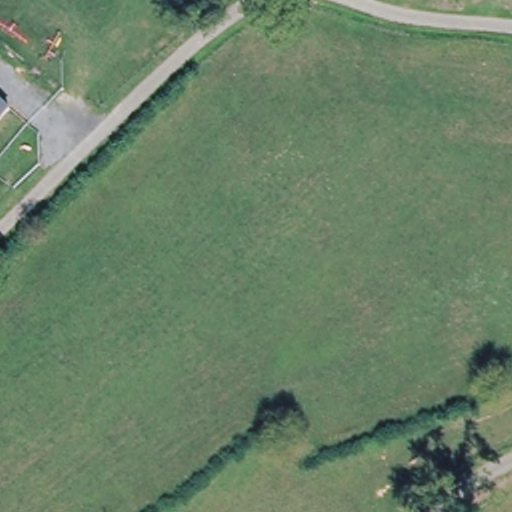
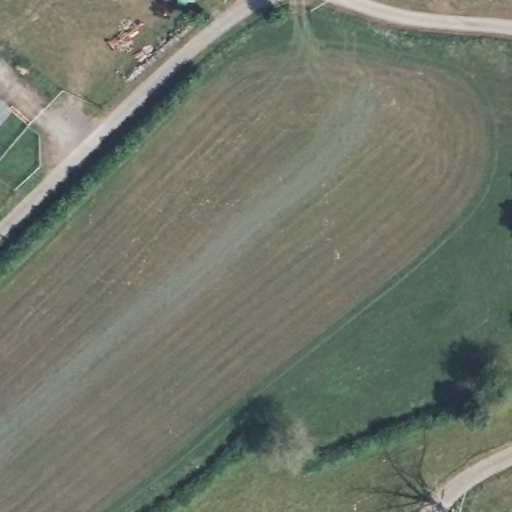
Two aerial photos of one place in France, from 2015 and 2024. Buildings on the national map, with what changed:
unchanged [(0,123),(0,98),(13,108),(0,123)]

